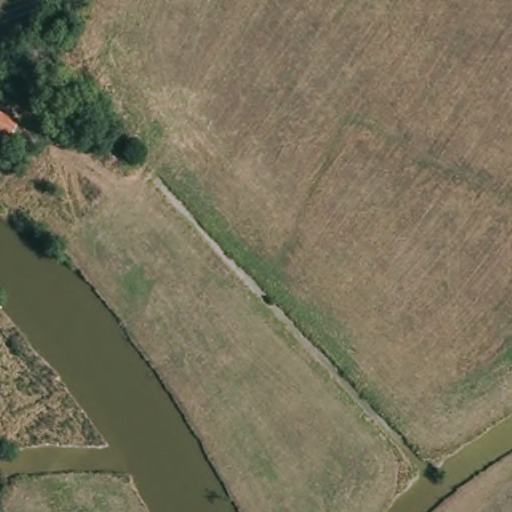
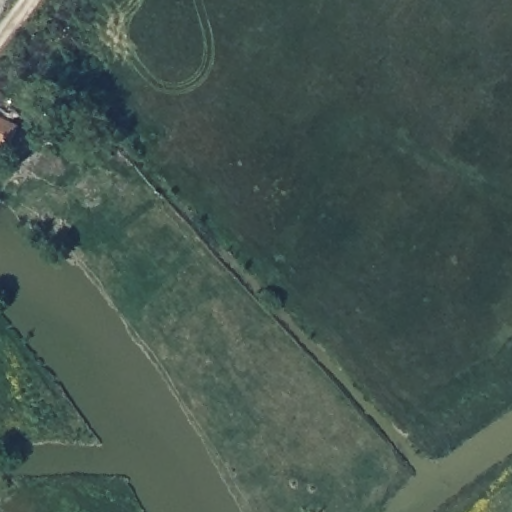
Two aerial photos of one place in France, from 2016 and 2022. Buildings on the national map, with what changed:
unchanged [(0,148),(0,117),(17,128),(5,151),(0,148)]

